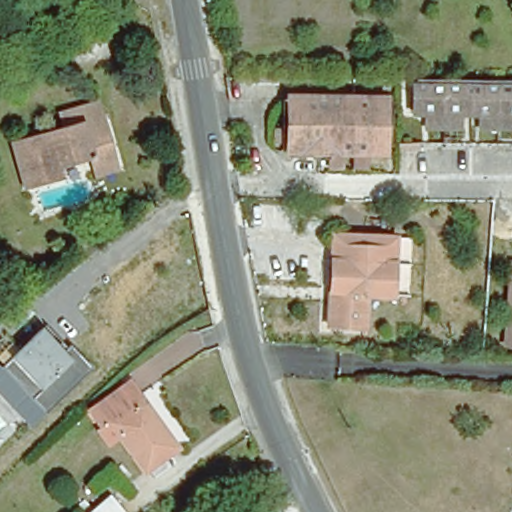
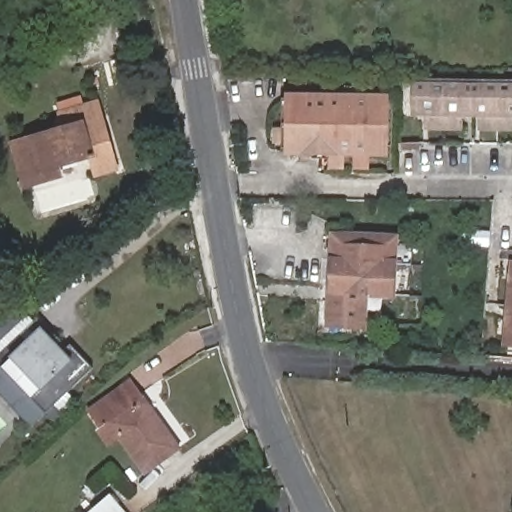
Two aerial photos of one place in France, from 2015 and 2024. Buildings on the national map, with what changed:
unchanged [(460,132),(445,132),(433,132),(432,117),(420,117),(420,83),(429,83),(448,84),(506,84),(512,84),(512,133),(501,133),(487,133),(486,117),(460,117),(460,132)]
unchanged [(352,146),(343,146),(343,158),(328,157),(328,145),(316,145),(303,145),(304,153),(299,153),(299,148),(296,148),(296,145),(290,145),(290,138),(274,138),(274,123),(290,123),(291,93),(354,94),(383,94),(383,146),(367,146),(367,158),(352,159),(352,146)]
unchanged [(60,160),(62,170),(26,180),(13,137),(68,121),(64,107),(99,97),(120,165),(97,171),(91,151),(60,160)]
unchanged [(400,143),(415,144),(416,151),(400,151),(400,143)]
unchanged [(334,235),(395,237),(392,295),(366,294),(363,325),(329,323),(334,235)]
unchanged [(512,298),(512,340),(508,339),(512,298)]
unchanged [(89,382),(82,374),(50,414),(0,367),(43,326),(67,352),(74,348),(92,365),(99,373),(89,382)]
unchanged [(147,472),(109,419),(102,424),(92,410),(127,384),(141,401),(144,399),(180,448),(147,472)]
unchanged [(86,512),(105,492),(125,512),(86,512)]

